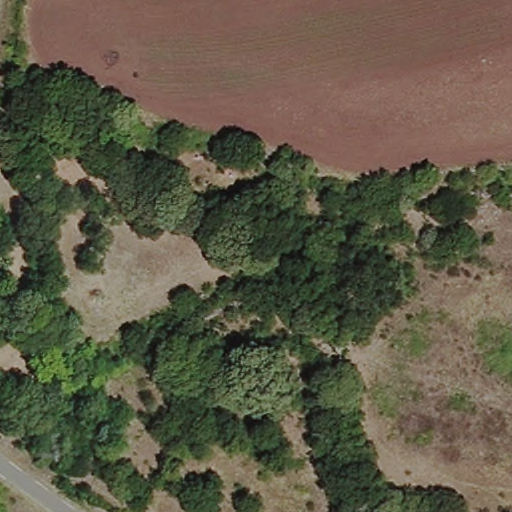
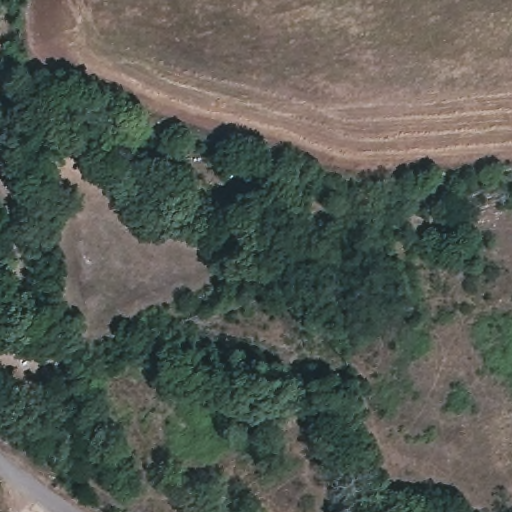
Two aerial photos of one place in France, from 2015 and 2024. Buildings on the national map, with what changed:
unchanged [(363,511),(361,512),(346,512),(341,495),(359,491),(363,511)]

